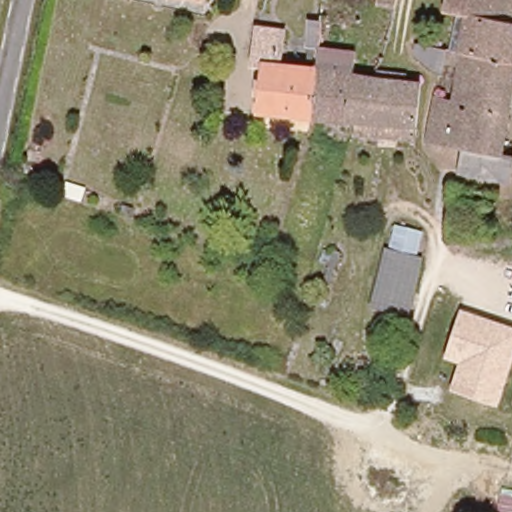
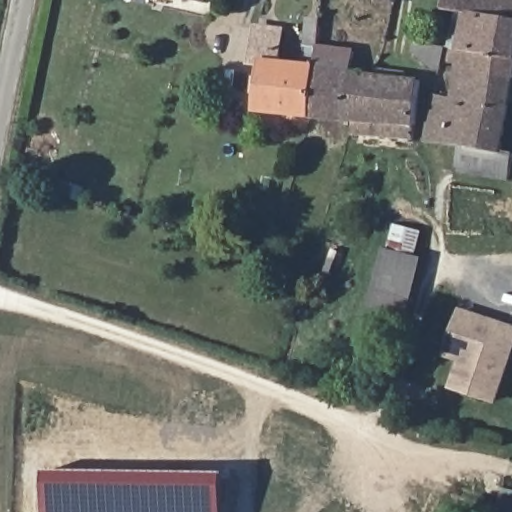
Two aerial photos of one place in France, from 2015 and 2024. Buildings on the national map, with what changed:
unchanged [(168,0),(199,0),(197,9),(168,0)]
unchanged [(369,0),(396,0),(394,6),(369,0)]
unchanged [(494,55),(480,53),(459,50),(464,14),(441,10),(442,0),(512,0),(512,76),(512,79),(493,76),(494,55)]
unchanged [(256,74),(263,74),(264,60),(252,59),(258,24),(283,30),(280,64),(309,67),(310,48),(308,48),(311,20),(323,22),(320,49),(320,54),(313,114),(259,108),(261,91),(255,90),(256,74)]
unchanged [(427,65),(404,52),(405,42),(413,43),(436,46),(434,69),(432,69),(427,65)]
unchanged [(430,142),(428,141),(424,141),(429,95),(447,97),(451,62),(440,60),(442,47),(459,50),(480,53),(494,55),(493,76),(512,79),(500,151),(512,153),(512,165),(510,181),(456,171),(458,146),(430,142)]
unchanged [(353,117),(316,114),(313,114),(320,54),(358,57),(357,73),(353,117)]
unchanged [(368,119),(358,117),(353,117),(357,73),(404,77),(422,79),(418,124),(368,119)]
unchanged [(379,249),(386,249),(395,227),(420,228),(419,253),(410,316),(369,306),(379,249)]
unchanged [(451,390),(461,365),(446,359),(461,308),(512,326),(512,363),(499,405),(451,390)]
new [(46,472),(228,474),(227,512),(45,512),(46,472)]

